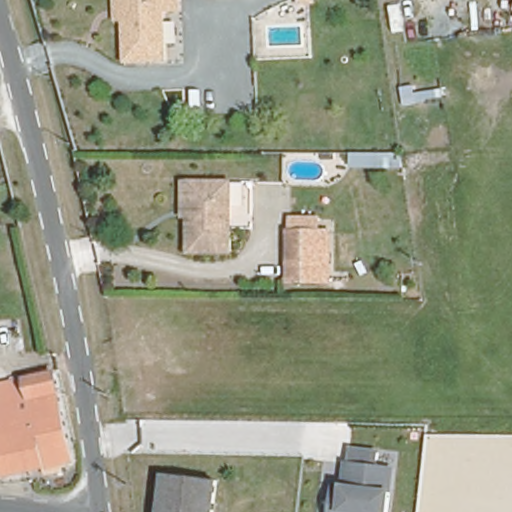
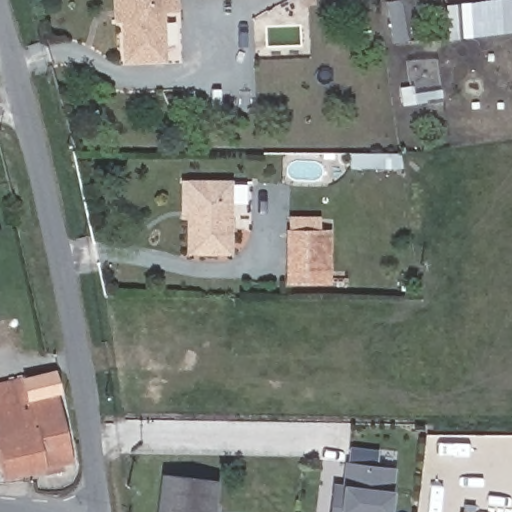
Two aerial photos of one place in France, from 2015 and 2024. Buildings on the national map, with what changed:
unchanged [(165,13),(166,24),(166,64),(125,65),(125,36),(125,23),(117,23),(116,0),(180,0),(180,13),(165,13)]
new [(488,0),(512,0),(512,32),(471,36),(468,2),(488,0)]
unchanged [(170,219),(170,182),(180,182),(229,183),(227,252),(179,251),(179,219),(170,219)]
unchanged [(327,235),(327,283),(318,283),(317,283),(287,284),(286,235),(317,235),(327,235)]
unchanged [(73,458),(4,476),(1,464),(0,464),(0,384),(51,371),(73,458)]
unchanged [(342,485),(347,445),(376,447),(375,463),(395,466),(391,512),(328,512),(331,483),(342,485)]
unchanged [(215,483),(213,512),(157,512),(161,477),(215,483)]

